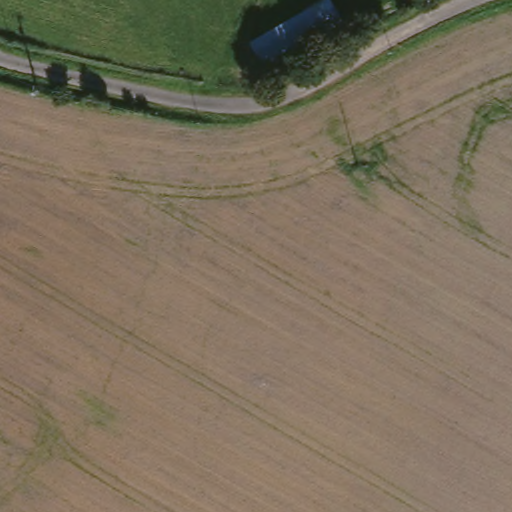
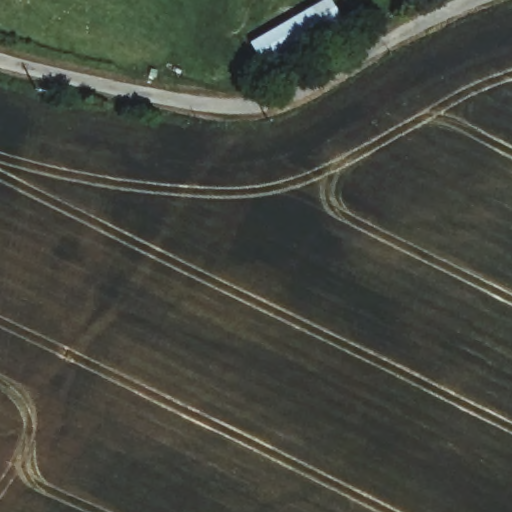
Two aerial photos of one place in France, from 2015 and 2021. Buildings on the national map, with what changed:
unchanged [(352,42),(270,84),(247,43),(323,3),(352,42)]

